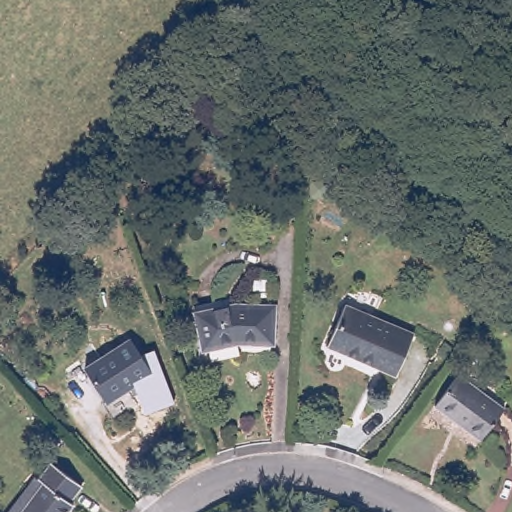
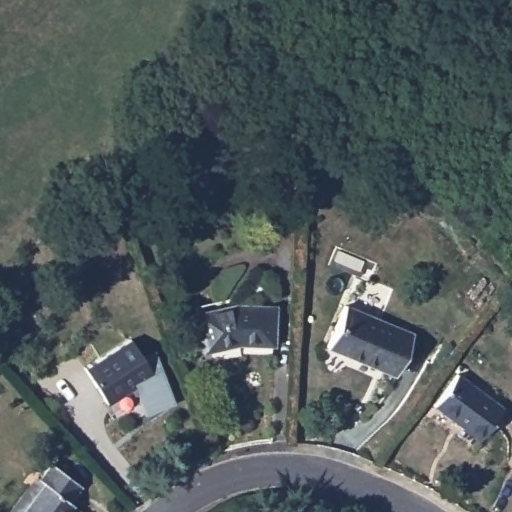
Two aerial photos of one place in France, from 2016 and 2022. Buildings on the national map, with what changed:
unchanged [(230,302),(275,307),(276,344),(232,340),(201,350),(190,312),(230,302)]
unchanged [(410,331),(395,372),(328,347),(344,305),(410,331)]
unchanged [(130,342),(154,377),(110,405),(86,368),(130,342)]
unchanged [(503,408),(481,437),(433,403),(457,373),(503,408)]
unchanged [(82,488),(71,504),(75,507),(72,512),(23,512),(44,486),(39,483),(50,467),(82,488)]

